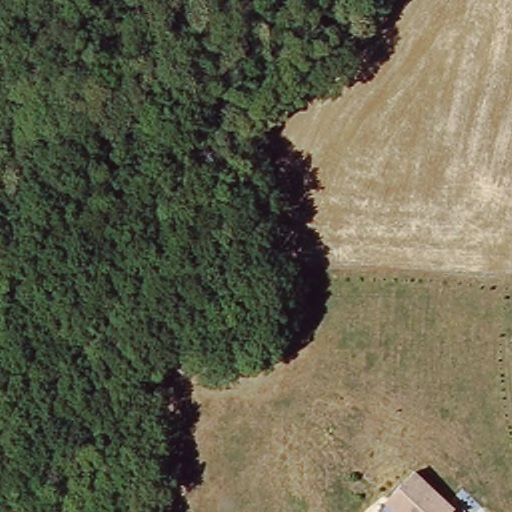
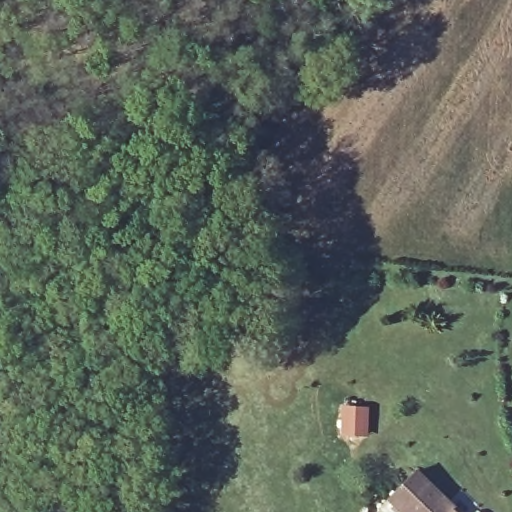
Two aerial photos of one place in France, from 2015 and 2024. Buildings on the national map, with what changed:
unchanged [(451,512),(397,512),(386,501),(416,474),(448,505),(446,507),(451,512)]

